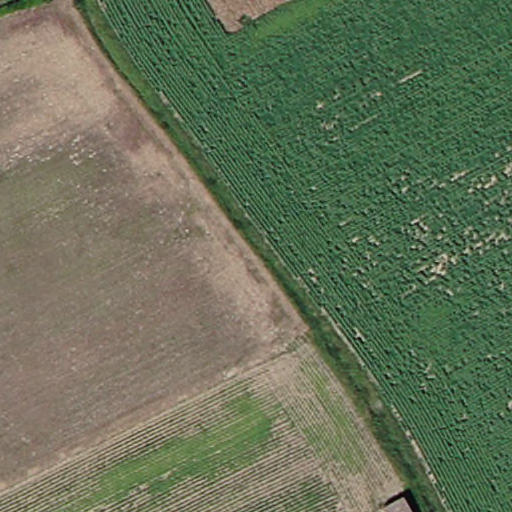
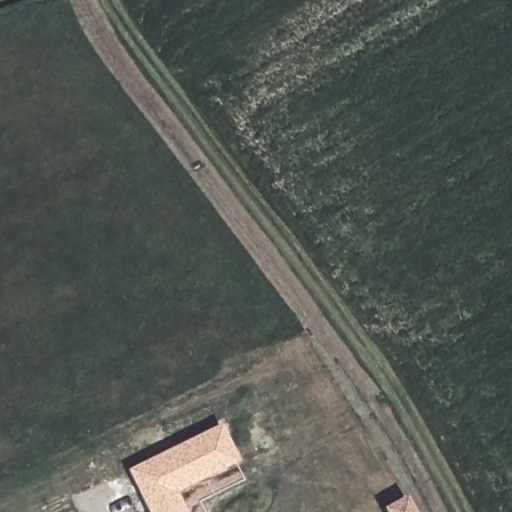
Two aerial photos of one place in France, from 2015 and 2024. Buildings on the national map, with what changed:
new [(218,427),(236,462),(176,492),(184,512),(148,512),(126,469),(218,427)]
unchanged [(389,495),(399,512),(371,512),(368,506),(389,495)]

